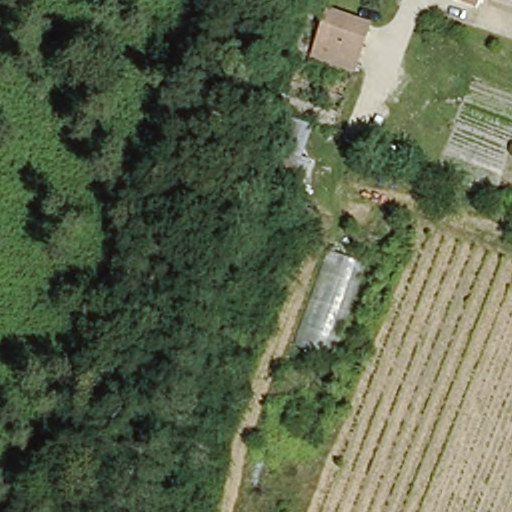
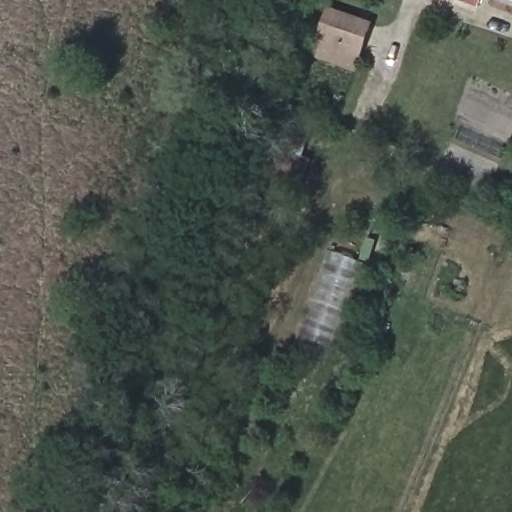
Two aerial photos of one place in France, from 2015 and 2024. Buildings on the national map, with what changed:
unchanged [(338,0),(378,15),(361,60),(317,44),(335,0),(338,0)]
unchanged [(330,356),(295,341),(332,249),(365,261),(330,356)]

